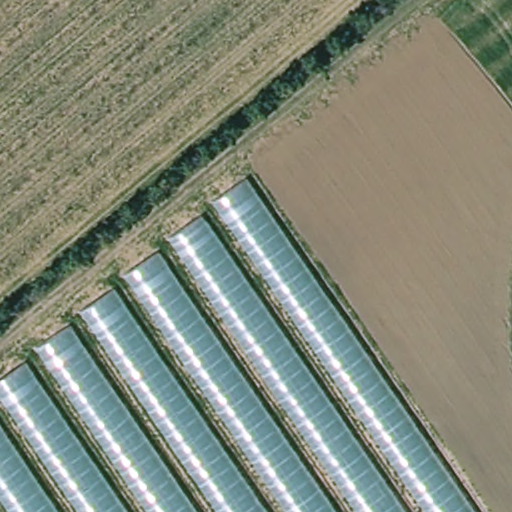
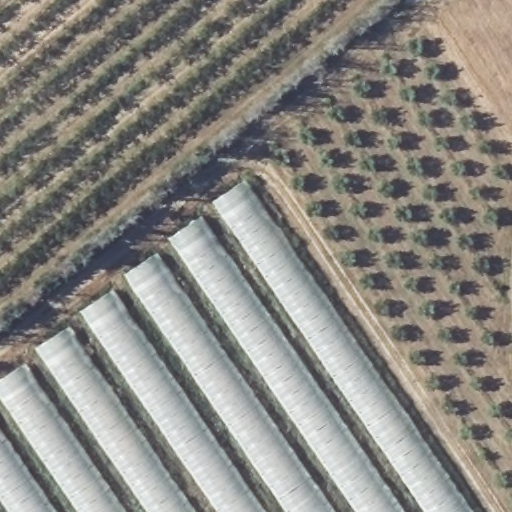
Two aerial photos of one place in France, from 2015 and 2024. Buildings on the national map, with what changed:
unchanged [(244,183),(472,512),(0,512),(0,382),(244,183)]

